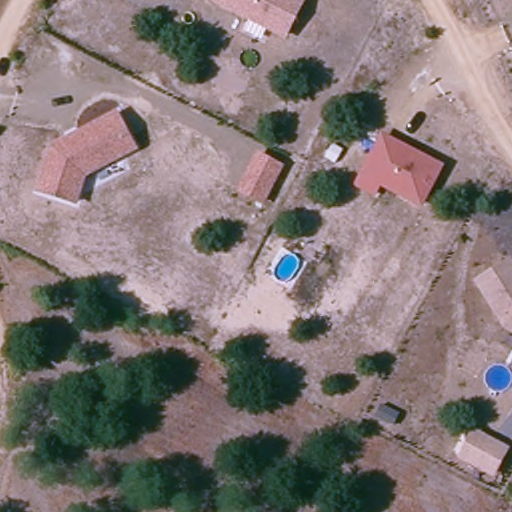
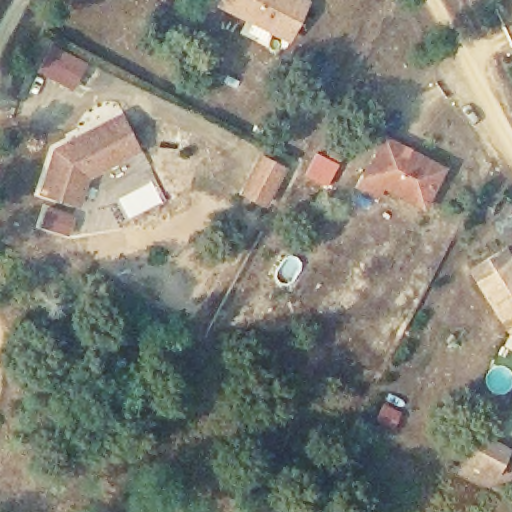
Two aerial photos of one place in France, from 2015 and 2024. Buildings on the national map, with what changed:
unchanged [(284,37),(216,1),(217,0),(300,0),(303,1),(284,37)]
new [(37,71),(52,43),(88,61),(73,90),(37,71)]
unchanged [(116,114),(136,147),(85,177),(76,205),(39,192),(53,150),(116,114)]
unchanged [(356,185),(362,175),(382,137),(439,167),(420,205),(379,184),(374,195),(356,185)]
unchanged [(261,201),(239,190),(258,154),(280,166),(261,201)]
unchanged [(512,273),(512,337),(504,332),(475,285),(508,266),(512,273)]
unchanged [(460,457),(474,432),(505,449),(492,474),(460,457)]

